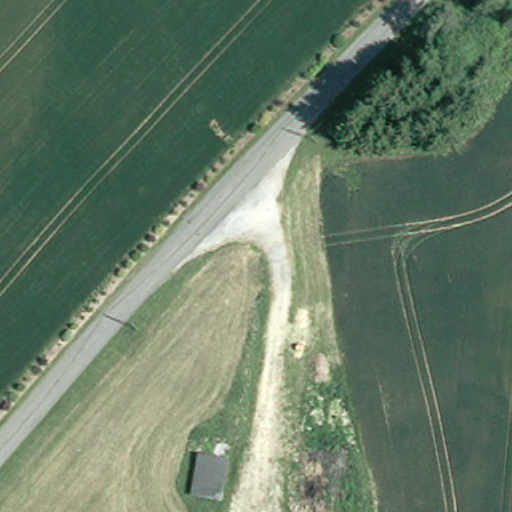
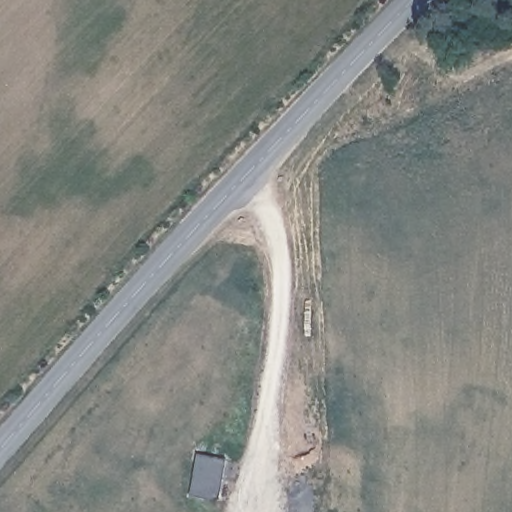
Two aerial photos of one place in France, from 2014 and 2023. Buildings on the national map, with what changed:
unchanged [(190,494),(196,452),(227,456),(218,498),(190,494)]

